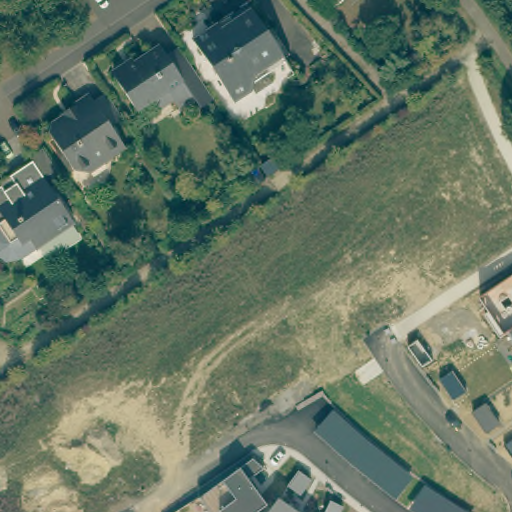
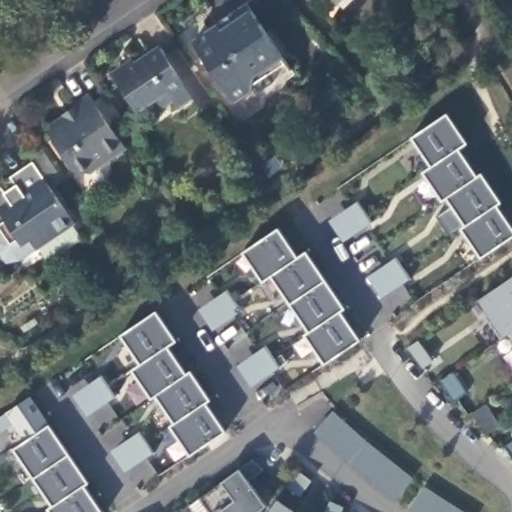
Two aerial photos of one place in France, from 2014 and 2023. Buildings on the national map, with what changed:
unchanged [(332,8),(325,0),(341,0),(332,8)]
unchanged [(249,85),(230,98),(190,41),(189,38),(205,27),(213,22),(225,14),(226,15),(245,4),(285,61),(266,74),(269,78),(253,90),(249,85)]
unchanged [(147,58),(163,50),(169,58),(180,51),(215,102),(204,110),(187,85),(172,94),(175,99),(156,110),(152,104),(139,113),(114,76),(128,67),(135,62),(145,55),(147,58)]
unchanged [(82,174),(69,171),(44,136),(45,124),(58,116),(60,120),(73,111),(68,103),(85,93),(91,101),(102,95),(119,120),(108,128),(121,147),(82,174)]
new [(449,114),(467,143),(459,149),(478,175),(482,173),(502,202),(498,204),(512,227),(512,237),(482,257),(462,228),(467,224),(448,196),(443,200),(424,171),(433,166),(412,137),(449,114)]
unchanged [(72,225),(20,261),(4,264),(0,261),(0,191),(1,192),(13,185),(7,177),(32,160),(31,157),(41,151),(63,182),(51,192),(72,225)]
new [(336,233),(329,222),(350,208),(358,202),(372,224),(364,229),(343,243),(336,233)]
new [(306,335),(310,332),(273,276),(263,282),(244,253),(279,228),(299,257),(307,251),(345,308),(341,311),(361,340),(325,364),(306,335)]
new [(382,299),(374,289),(367,278),(388,264),(395,275),(402,285),(382,299)]
unchanged [(511,332),(506,335),(482,300),(512,279),(512,331),(511,332)]
new [(234,318),(213,332),(206,321),(199,311),(219,297),(228,291),(235,302),(242,312),(234,318)]
new [(172,426),(176,422),(157,393),(151,397),(134,370),(143,364),(121,334),(157,311),(177,341),(169,346),(187,373),(192,371),(210,399),(206,402),(226,431),(192,455),(172,426)]
unchanged [(511,332),(512,331),(512,334),(511,332)]
new [(272,374),(251,388),(244,377),(237,367),(257,353),(266,347),(273,358),(280,368),(272,374)]
new [(108,403),(87,417),(80,407),(73,396),(93,382),(101,377),(109,387),(116,398),(108,403)]
new [(335,410),(412,478),(397,499),(315,432),(335,410)]
new [(54,506),(14,448),(50,425),(89,483),(85,485),(103,512),(51,512),(49,509),(54,506)]
new [(146,459),(125,474),(118,463),(111,452),(131,438),(140,433),(147,443),(154,454),(146,459)]
unchanged [(225,481),(242,469),(254,458),(264,470),(249,481),(267,505),(258,512),(222,512),(211,512),(202,497),(225,481)]
new [(419,512),(412,507),(426,487),(464,512),(419,512)]
unchanged [(299,512),(271,512),(280,499),(299,512)]

